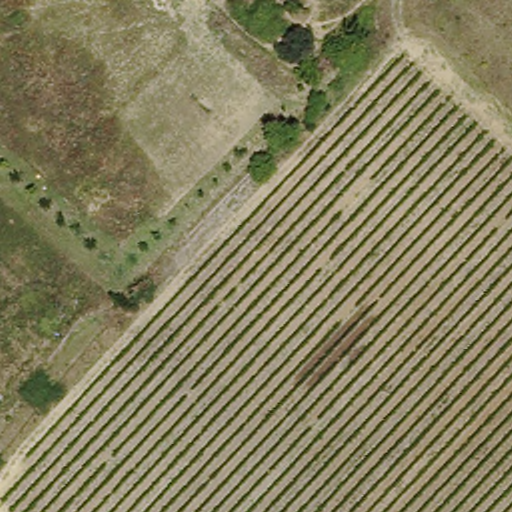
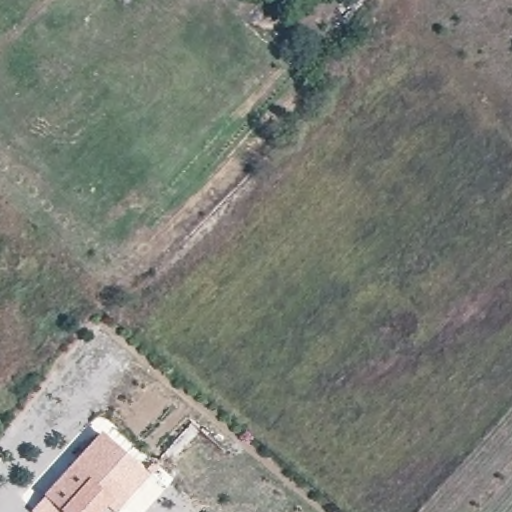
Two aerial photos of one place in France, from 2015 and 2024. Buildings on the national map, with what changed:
new [(112,500),(90,479),(61,511),(62,512),(32,512),(31,512),(44,495),(102,432),(149,476),(116,512),(101,512),(112,500)]
new [(101,512),(62,512),(61,511),(90,479),(112,500),(101,512)]

